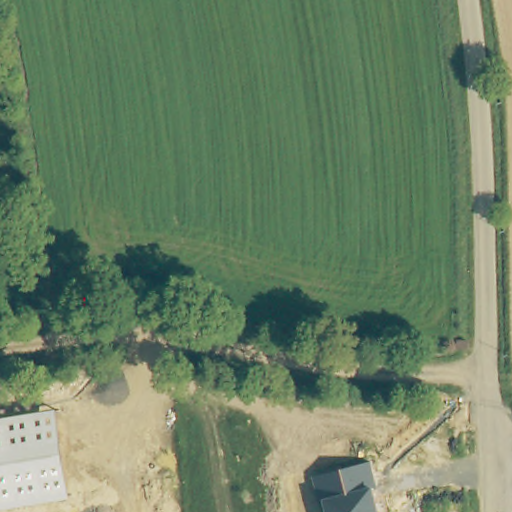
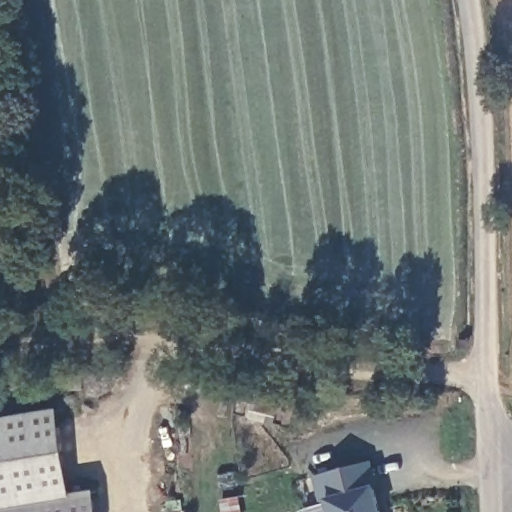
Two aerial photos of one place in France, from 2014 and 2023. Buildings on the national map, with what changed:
unchanged [(72,499),(0,511),(0,420),(57,411),(72,499)]
unchanged [(380,489),(375,490),(380,512),(327,512),(325,499),(318,501),(312,477),(373,461),(380,489)]
new [(0,512),(0,511),(72,499),(71,495),(95,490),(99,512),(0,512)]

